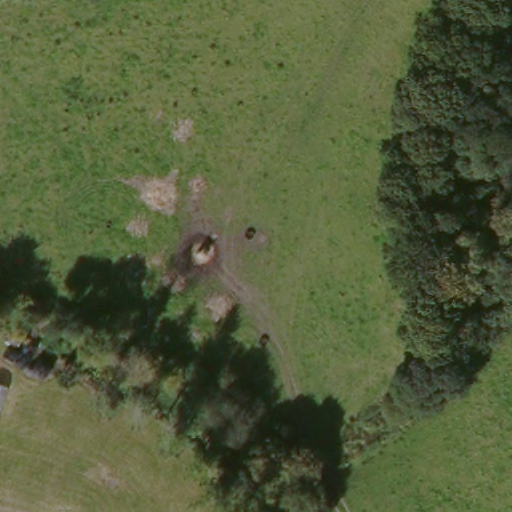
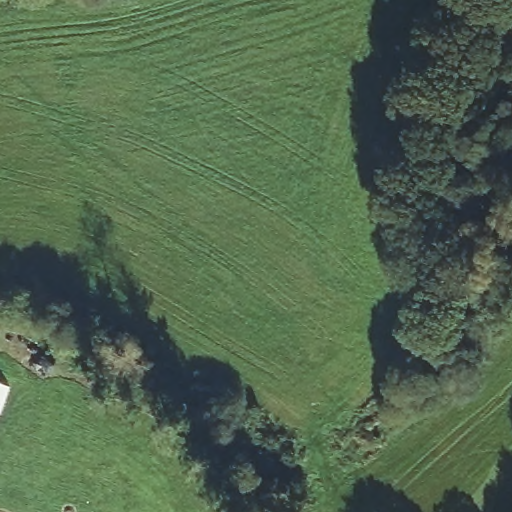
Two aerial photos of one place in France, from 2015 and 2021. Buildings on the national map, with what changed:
[]

